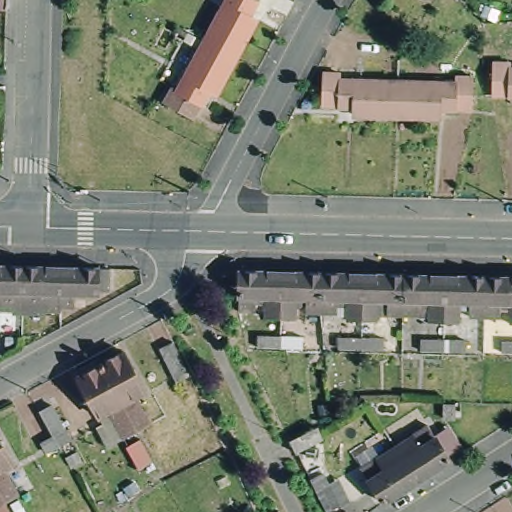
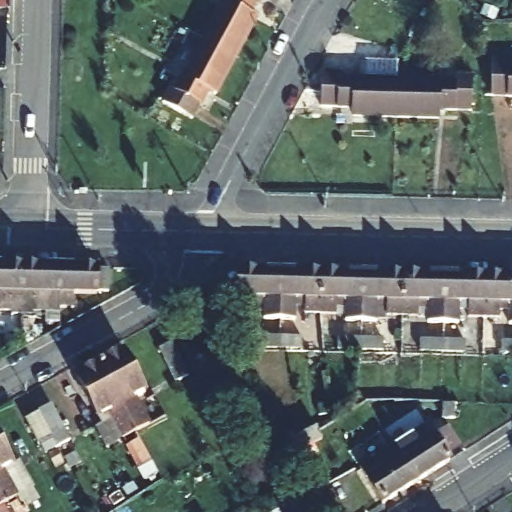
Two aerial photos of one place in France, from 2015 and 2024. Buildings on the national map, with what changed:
unchanged [(10,4),(0,4),(0,0),(11,0),(10,4)]
unchanged [(206,33),(224,0),(254,0),(249,8),(257,12),(237,50),(206,33)]
unchanged [(216,89),(208,85),(193,114),(163,98),(172,82),(178,85),(206,33),(237,50),(216,89)]
unchanged [(488,56),(505,56),(505,65),(512,65),(512,92),(487,91),(488,56)]
unchanged [(397,108),(396,116),(354,115),(354,107),(322,106),(323,74),(341,74),(341,72),(361,72),(361,81),(398,82),(397,108)]
unchanged [(397,108),(398,82),(454,83),(455,77),(472,78),(472,110),(439,109),(439,117),(396,116),(397,108)]
unchanged [(12,305),(12,302),(0,302),(0,256),(23,256),(21,305),(12,305)]
unchanged [(31,256),(60,257),(59,297),(59,303),(31,302),(30,305),(21,305),(23,256),(31,256)]
unchanged [(98,280),(98,285),(74,284),(73,298),(59,297),(60,257),(109,258),(108,280),(98,280)]
unchanged [(264,307),(264,294),(254,294),(253,301),(237,301),(238,261),(281,262),(280,308),(264,307)]
unchanged [(281,262),(323,263),(321,303),(306,302),(306,295),(295,295),(296,308),(280,308),(281,262)]
unchanged [(347,309),(347,296),(337,296),(337,303),(321,303),(323,263),(363,264),(362,309),(347,309)]
unchanged [(363,264),(396,265),(404,265),(403,305),(388,304),(388,297),(377,297),(376,310),(362,309),(363,264)]
unchanged [(429,311),(429,298),(419,298),(419,305),(403,305),(404,265),(444,266),(443,312),(429,311)]
unchanged [(444,266),(472,267),(486,267),(484,307),(469,306),(469,299),(459,298),(459,312),(443,312),(444,266)]
unchanged [(509,300),(499,300),(499,307),(484,307),(486,267),(512,268),(512,313),(509,313),(509,300)]
unchanged [(257,347),(258,335),(279,335),(303,336),(302,348),(284,347),(279,348),(257,347)]
unchanged [(384,349),(361,349),(339,348),(339,337),(361,338),(384,338),(384,349)]
unchanged [(466,351),(443,351),(421,351),(421,339),(443,340),(466,340),(466,351)]
unchanged [(176,381),(159,348),(171,341),(188,375),(176,381)]
unchanged [(503,341),(512,341),(512,353),(502,353),(503,341)]
unchanged [(113,380),(100,358),(123,346),(145,387),(136,393),(149,419),(137,425),(113,380)]
unchanged [(123,433),(109,406),(99,411),(78,371),(100,358),(113,380),(137,425),(123,433)]
unchanged [(455,404),(455,418),(443,418),(443,404),(455,404)]
unchanged [(40,442),(52,436),(45,423),(38,412),(51,405),(64,429),(70,440),(58,447),(46,452),(40,442)]
unchanged [(411,436),(410,435),(427,424),(450,460),(448,462),(425,476),(417,482),(397,451),(394,447),(411,436)]
unchanged [(316,427),(319,431),(323,439),(296,452),(291,440),(303,434),(316,427)]
unchanged [(0,495),(0,441),(13,464),(3,470),(17,496),(4,503),(0,495)]
unchanged [(397,451),(417,482),(397,494),(396,495),(384,503),(361,467),(378,456),(379,457),(394,447),(397,451)]
unchanged [(329,483),(314,490),(310,480),(324,473),(329,483)]
unchanged [(0,505),(0,495),(4,503),(0,505)]

